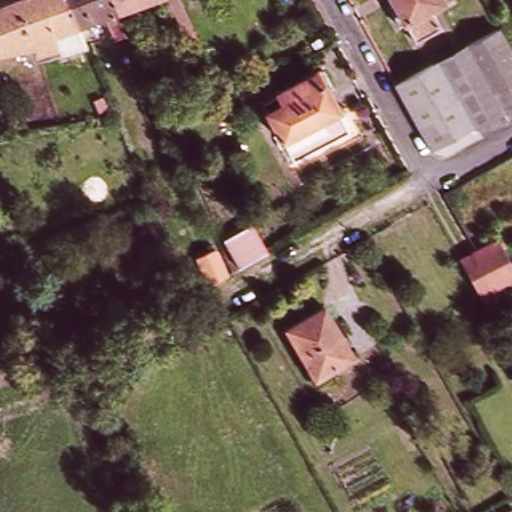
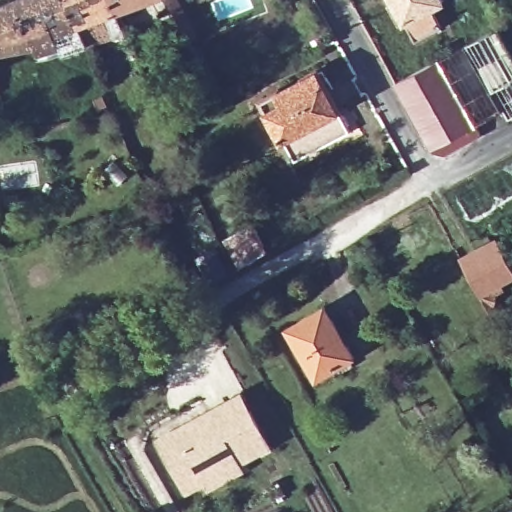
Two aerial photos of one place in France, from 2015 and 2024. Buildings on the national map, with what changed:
unchanged [(33,40),(0,47),(0,6),(14,0),(68,0),(79,28),(83,36),(86,42),(40,56),(37,50),(33,40)]
unchanged [(133,44),(123,49),(106,11),(87,19),(89,23),(79,28),(68,0),(114,0),(117,6),(133,44)]
unchanged [(114,0),(133,0),(117,6),(114,0)]
unchanged [(177,11),(172,0),(181,0),(184,8),(177,11)]
unchanged [(430,9),(440,29),(412,43),(401,23),(397,24),(386,4),(389,3),(388,0),(441,0),(442,2),(430,9)]
demolished [(188,32),(195,29),(197,34),(191,38),(188,32)]
unchanged [(499,115),(464,50),(497,32),(512,59),(512,121),(505,125),(499,115)]
unchanged [(464,50),(499,115),(473,129),(437,64),(464,50)]
unchanged [(437,64),(473,129),(465,134),(471,144),(443,159),(430,154),(394,88),(437,64)]
unchanged [(262,108),(318,76),(349,133),(293,164),(262,108)]
demolished [(412,216),(426,209),(440,233),(407,252),(401,242),(378,254),(368,237),(411,213),(412,216)]
unchanged [(239,268),(224,239),(253,224),(267,252),(239,268)]
unchanged [(480,297),(459,260),(496,239),(512,269),(512,279),(486,294),(496,311),(490,314),(480,297)]
unchanged [(213,245),(226,274),(209,282),(195,253),(213,245)]
unchanged [(325,305),(355,355),(317,378),(286,328),(325,305)]
new [(272,447),(240,464),(245,472),(210,492),(205,484),(187,494),(155,439),(240,391),(272,447)]

